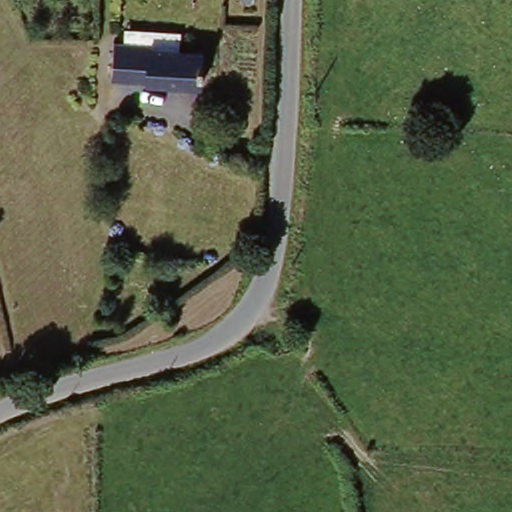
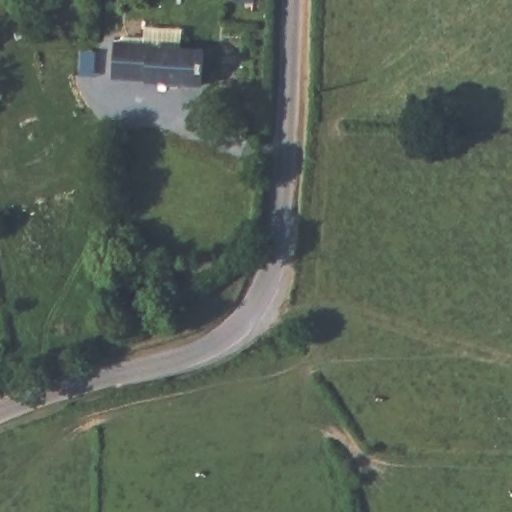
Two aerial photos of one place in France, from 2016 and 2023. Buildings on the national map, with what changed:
unchanged [(151,80),(114,77),(115,39),(124,39),(155,46),(151,80)]
unchanged [(210,48),(206,82),(151,80),(155,46),(210,48)]

